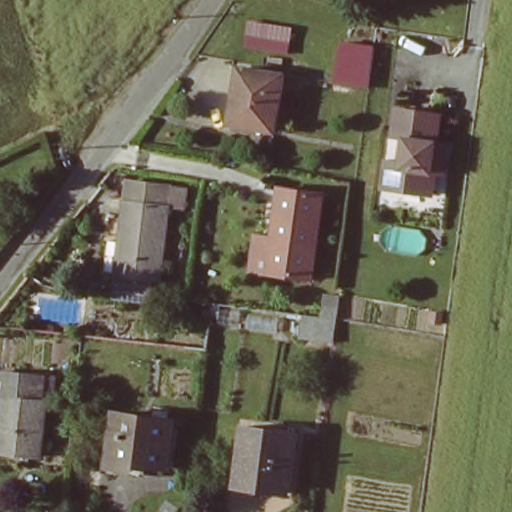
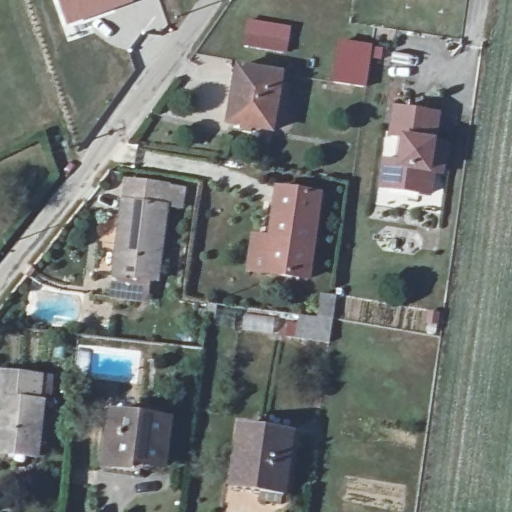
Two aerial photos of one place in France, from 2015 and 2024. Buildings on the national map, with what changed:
new [(134,3),(64,27),(54,0),(133,0),(134,3)]
unchanged [(290,38),(289,59),(247,52),(249,33),(290,38)]
unchanged [(370,86),(346,85),(351,43),(375,47),(378,47),(374,86),(370,86)]
unchanged [(284,82),(276,136),(224,129),(233,74),(284,82)]
unchanged [(441,117),(429,199),(381,192),(385,164),(405,167),(410,142),(399,140),(403,111),(441,117)]
unchanged [(162,298),(119,293),(129,189),(170,192),(162,298)]
unchanged [(278,191),(324,199),(310,283),(265,277),(278,191)]
unchanged [(298,345),(300,315),(321,317),(325,294),(344,298),(342,318),(337,351),(298,345)]
unchanged [(44,376),(41,401),(49,403),(39,459),(0,452),(0,441),(8,399),(0,397),(0,370),(44,376)]
unchanged [(171,421),(167,472),(135,471),(134,484),(106,481),(112,414),(171,421)]
unchanged [(303,438),(292,495),(240,485),(250,429),(303,438)]

